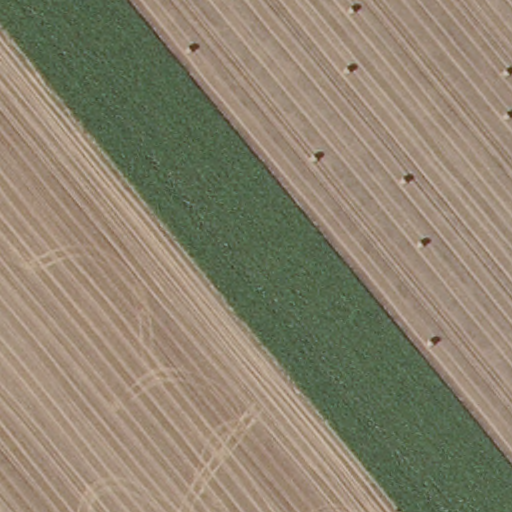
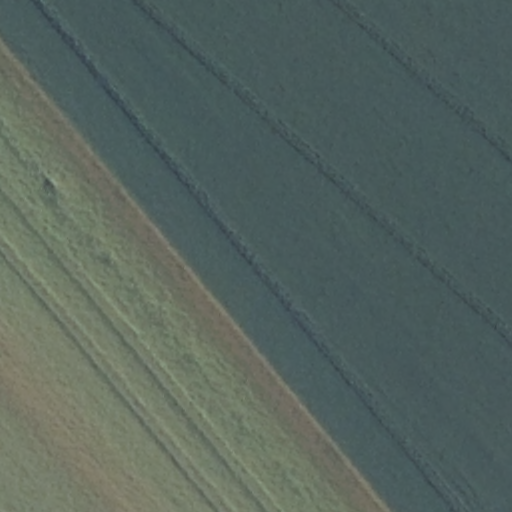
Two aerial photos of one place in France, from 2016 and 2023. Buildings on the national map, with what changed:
[]

